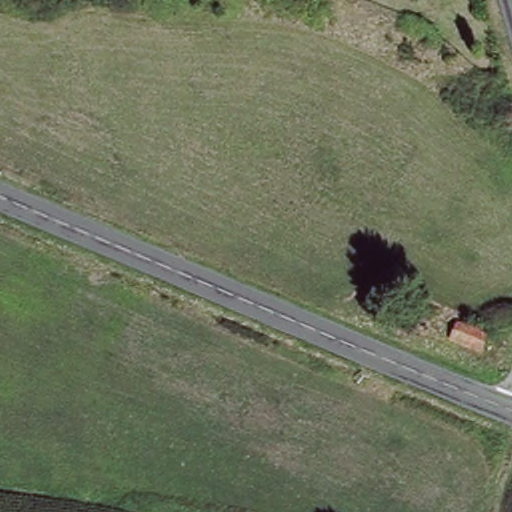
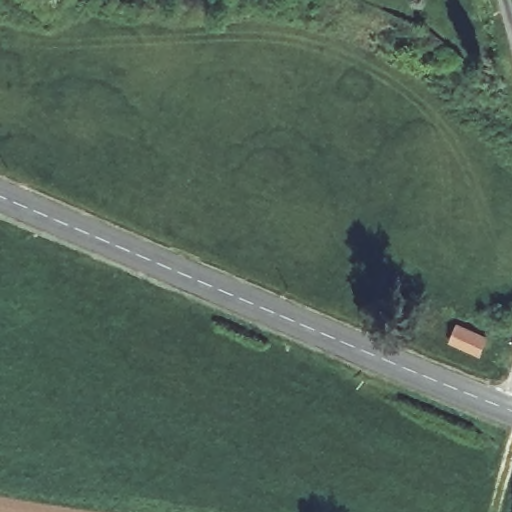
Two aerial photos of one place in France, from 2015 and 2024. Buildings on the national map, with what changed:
unchanged [(460,313),(495,324),(488,346),(452,336),(460,313)]

